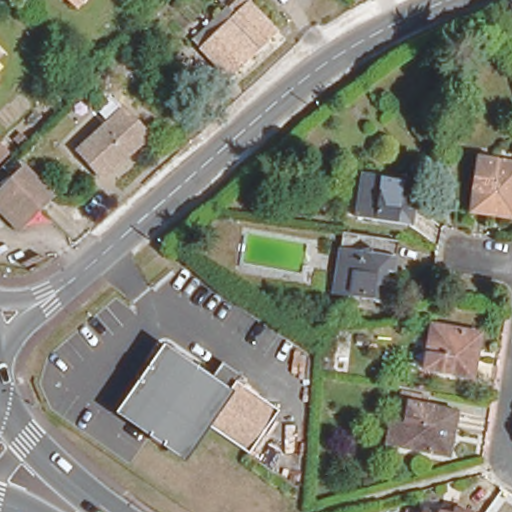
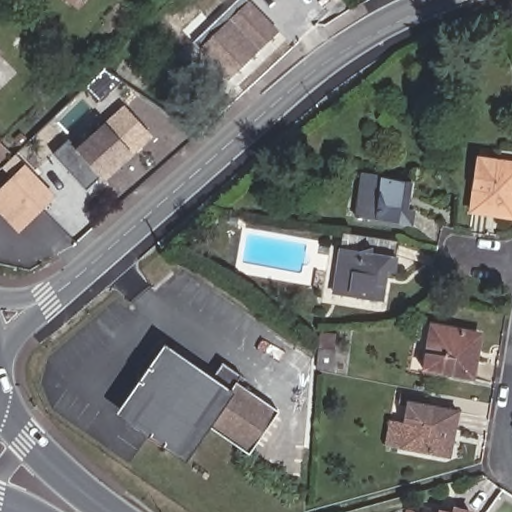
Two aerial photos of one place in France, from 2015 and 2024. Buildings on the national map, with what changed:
unchanged [(228,0),(242,0),(276,34),(231,76),(195,43),(231,3),(228,0)]
unchanged [(213,0),(226,0),(220,7),(213,0)]
unchanged [(0,57),(0,52),(3,55),(0,57)]
unchanged [(135,125),(148,138),(139,146),(104,181),(80,157),(125,115),(135,125)]
unchanged [(0,142),(10,153),(0,160),(0,142)]
unchanged [(496,168),(512,168),(512,213),(502,213),(502,206),(486,206),(486,215),(473,214),(475,161),(497,161),(496,168)]
unchanged [(0,204),(0,188),(11,176),(23,164),(55,194),(44,206),(25,227),(3,207),(0,204)]
unchanged [(410,179),(407,192),(401,191),(397,209),(411,211),(408,225),(355,217),(364,172),(410,179)]
unchanged [(386,283),(370,280),(368,297),(376,301),(374,314),(325,307),(337,241),(393,250),(386,283)]
unchanged [(435,346),(438,325),(480,329),(478,342),(471,341),(469,351),(478,352),(475,373),(425,367),(428,345),(435,346)]
unchanged [(186,463),(116,414),(166,343),(212,376),(222,363),(241,376),(238,383),(281,411),(252,454),(212,425),(186,463)]
unchanged [(320,368),(308,368),(309,357),(310,347),(322,349),(320,368)]
unchanged [(386,423),(406,424),(408,391),(426,392),(425,401),(458,403),(458,418),(446,417),(446,431),(453,431),(452,444),(410,442),(384,441),(386,423)]
unchanged [(411,500),(439,508),(443,496),(480,505),(478,512),(408,512),(411,500)]

